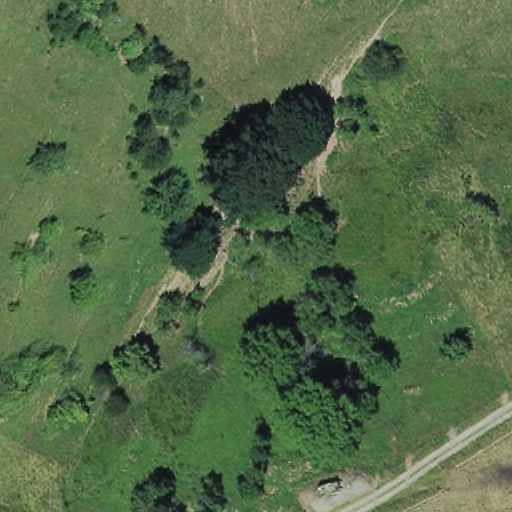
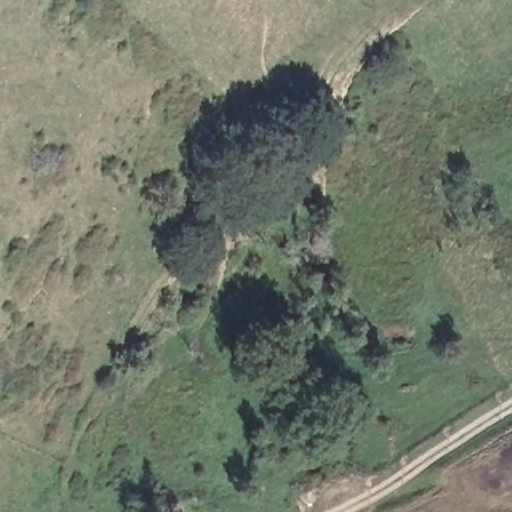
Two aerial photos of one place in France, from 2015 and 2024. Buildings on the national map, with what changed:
unchanged [(512,487),(507,467),(512,466),(512,487)]

